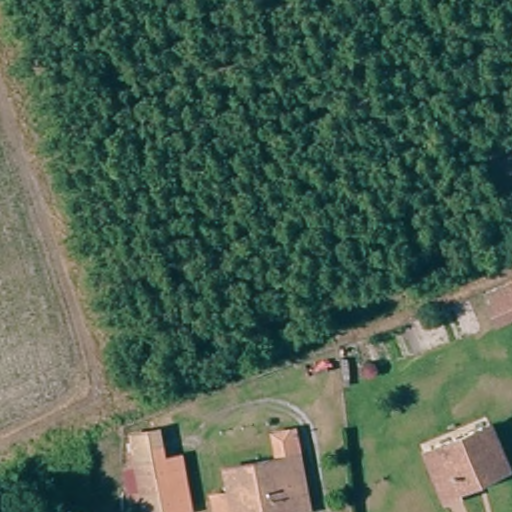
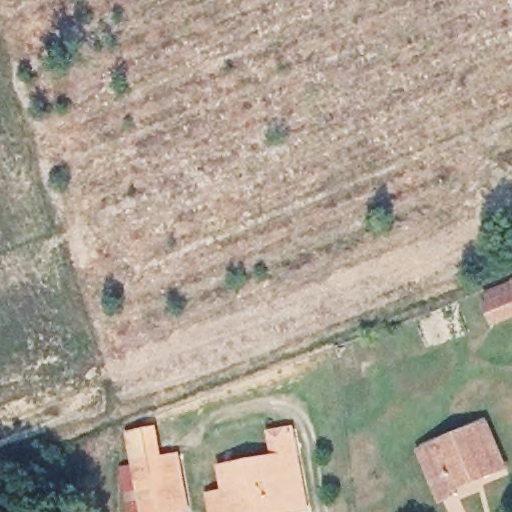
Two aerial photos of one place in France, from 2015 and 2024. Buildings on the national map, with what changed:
unchanged [(491,308),(497,305),(492,296),(512,288),(512,322),(500,328),(491,308)]
unchanged [(512,447),(512,477),(496,485),(490,477),(472,487),(473,496),(458,502),(438,455),(504,425),(512,447)]
unchanged [(166,435),(170,465),(188,462),(195,512),(151,512),(140,439),(166,435)]
unchanged [(221,505),(237,503),(233,478),(287,469),(283,444),(306,441),(310,466),(307,467),(315,512),(222,512),(221,505)]

